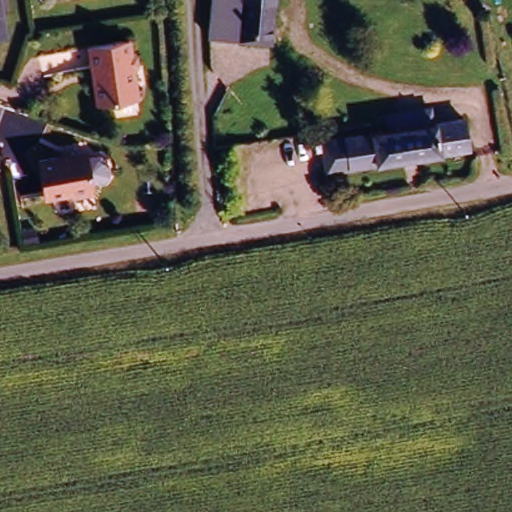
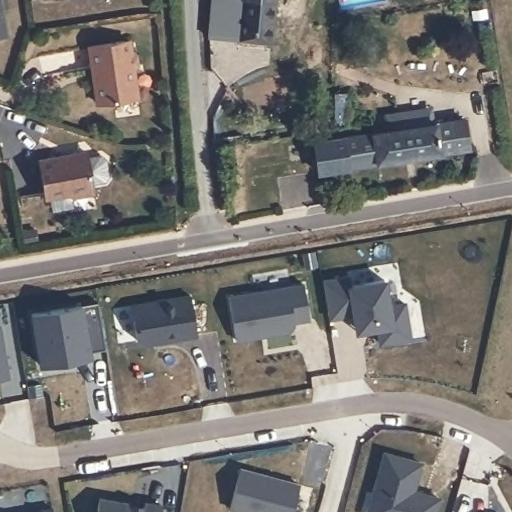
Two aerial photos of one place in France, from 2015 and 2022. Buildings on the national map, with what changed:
unchanged [(208,37),(212,0),(278,0),(274,45),(208,37)]
unchanged [(3,35),(0,35),(0,15),(3,35)]
unchanged [(128,37),(129,51),(134,50),(136,64),(133,65),(136,94),(94,99),(88,42),(128,37)]
unchanged [(470,151),(329,170),(326,144),(389,136),(386,117),(426,112),(438,109),(441,129),(467,125),(470,151)]
unchanged [(83,143),(86,162),(89,162),(91,186),(70,188),(68,184),(43,186),(36,152),(83,143)]
new [(354,273),(356,282),(387,277),(392,304),(407,302),(413,338),(379,345),(375,329),(354,332),(351,316),(329,319),(321,278),(354,273)]
new [(304,282),(311,321),(296,324),(290,332),(236,341),(228,296),(304,282)]
new [(183,292),(190,332),(140,340),(134,336),(129,301),(183,292)]
new [(82,302),(95,302),(104,348),(91,350),(91,355),(38,365),(30,311),(82,302)]
new [(4,373),(0,374),(0,347),(4,373)]
new [(423,461),(416,489),(441,497),(436,512),(366,512),(383,451),(423,461)]
new [(296,482),(288,512),(258,512),(229,504),(239,466),(296,482)]
new [(161,505),(160,512),(95,512),(98,496),(161,505)]
new [(48,512),(25,512),(34,511),(33,508),(48,507),(48,512)]

